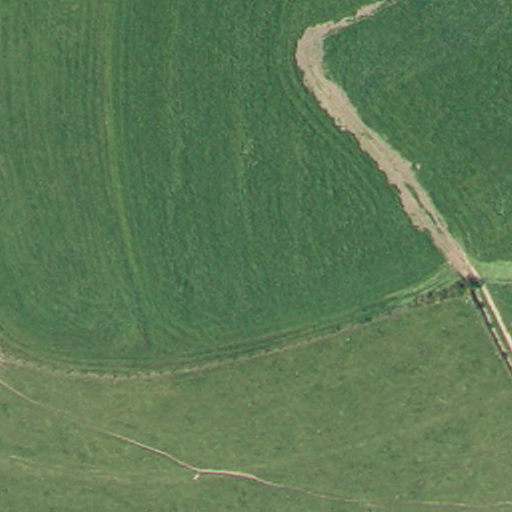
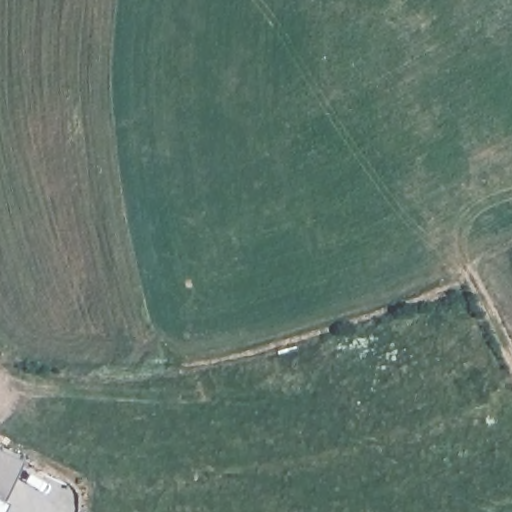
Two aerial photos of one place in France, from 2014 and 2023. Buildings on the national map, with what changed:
new [(5,498),(0,507),(0,449),(23,462),(5,498)]

